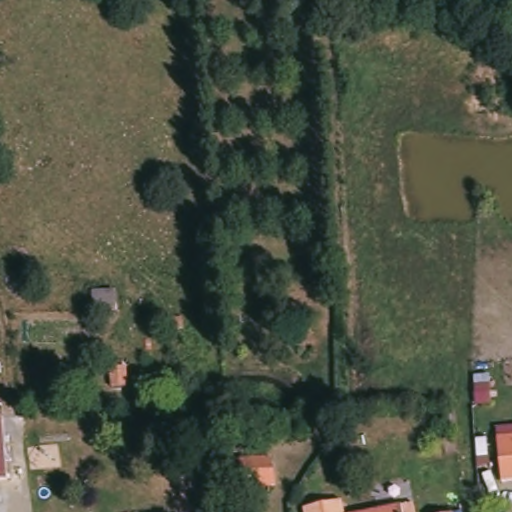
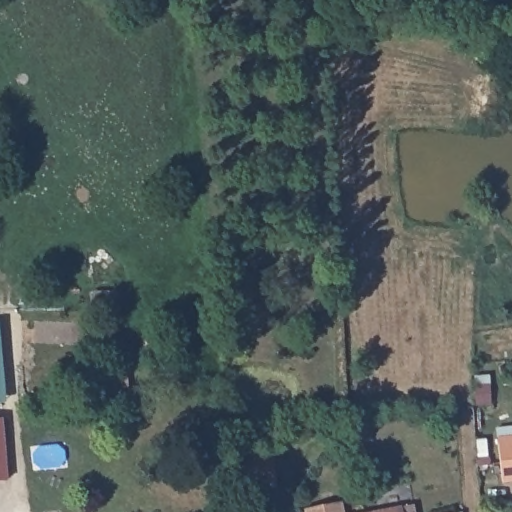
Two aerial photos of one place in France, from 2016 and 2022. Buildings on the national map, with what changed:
unchanged [(512,480),(502,481),(499,436),(512,435),(512,480)]
unchanged [(350,503),(351,512),(309,512),(309,510),(350,503)]
unchanged [(415,509),(415,512),(391,512),(415,509)]

